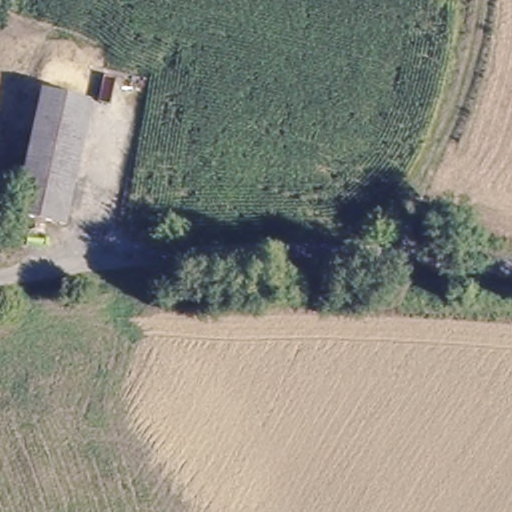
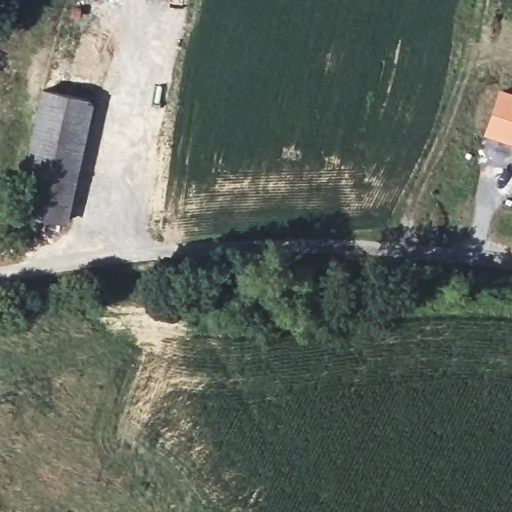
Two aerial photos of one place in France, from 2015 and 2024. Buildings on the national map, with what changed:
new [(499,87),(512,91),(512,145),(482,135),(499,87)]
unchanged [(82,102),(62,222),(14,215),(37,94),(82,102)]
unchanged [(115,108),(96,228),(62,222),(82,102),(115,108)]

